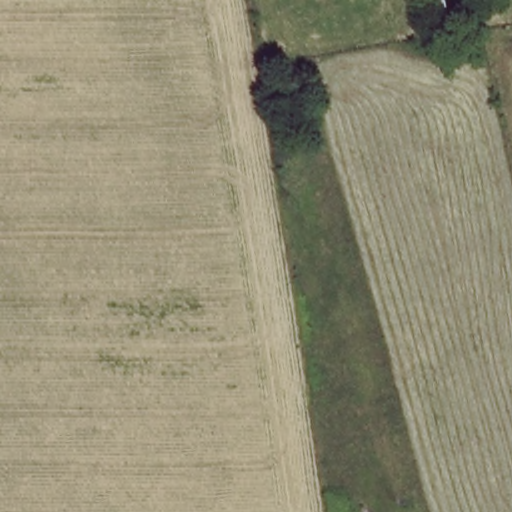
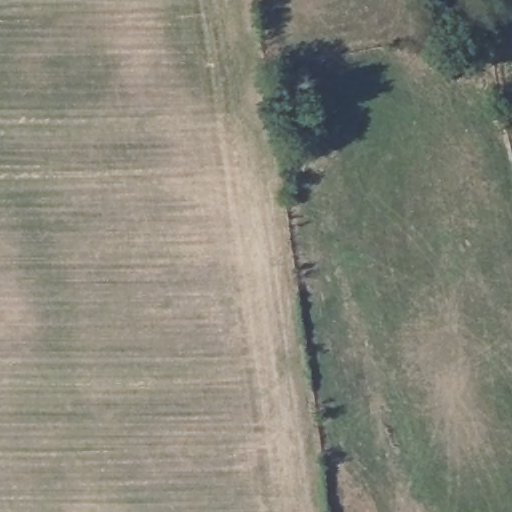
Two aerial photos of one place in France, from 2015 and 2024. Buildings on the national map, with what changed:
unchanged [(423,0),(440,0),(443,15),(426,17),(423,0)]

